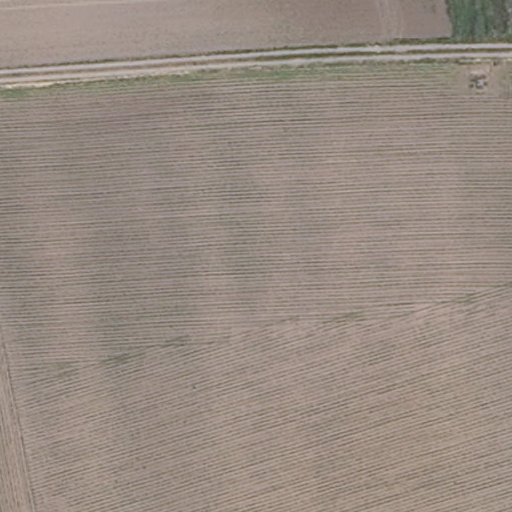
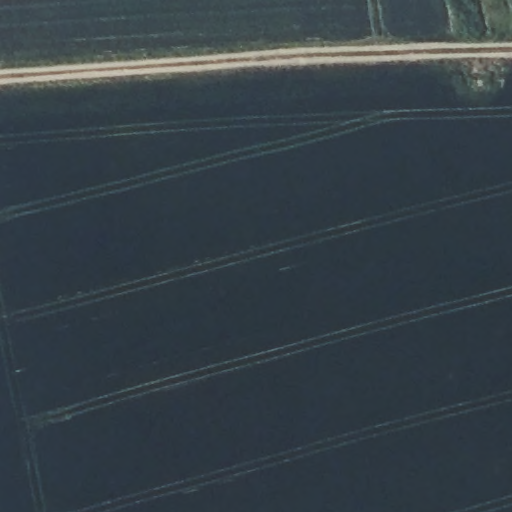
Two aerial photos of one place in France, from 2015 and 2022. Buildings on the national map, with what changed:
[]

